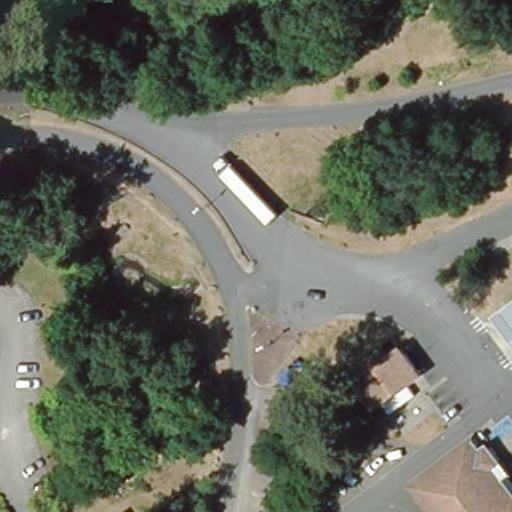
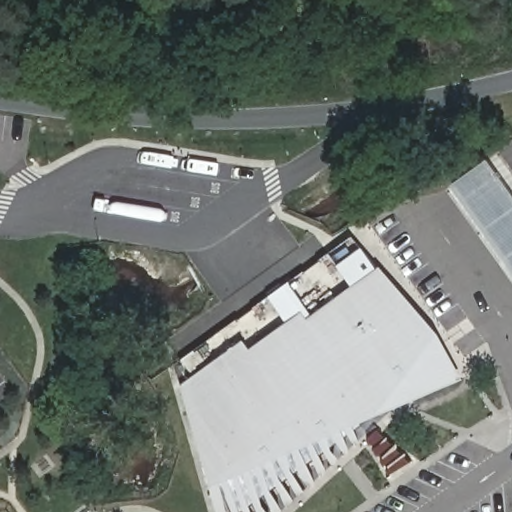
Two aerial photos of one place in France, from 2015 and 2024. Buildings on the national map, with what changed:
new [(449,185),(486,160),(512,197),(512,273),(449,185)]
new [(353,427),(358,441),(352,444),(348,437),(344,439),(348,451),(343,454),(335,444),(329,447),(337,460),(330,465),(322,453),(318,455),(325,471),(318,474),(313,459),(305,464),(314,481),(304,486),(298,472),(293,475),(302,492),(297,497),(287,479),(282,483),(292,501),(284,506),(275,488),(269,492),(280,512),(279,512),(271,512),(264,496),(259,499),(265,512),(256,512),(252,503),(248,506),(250,512),(243,512),(242,509),(239,512),(215,512),(181,386),(243,341),(249,351),(285,323),(268,297),(289,282),(312,316),(350,285),(336,265),(362,248),(439,337),(461,380),(353,427)]
demolished [(426,372),(378,408),(352,372),(401,337),(426,372)]
demolished [(512,488),(512,512),(428,512),(404,479),(472,434),(479,446),(488,438),(503,459),(496,468),(512,488)]

